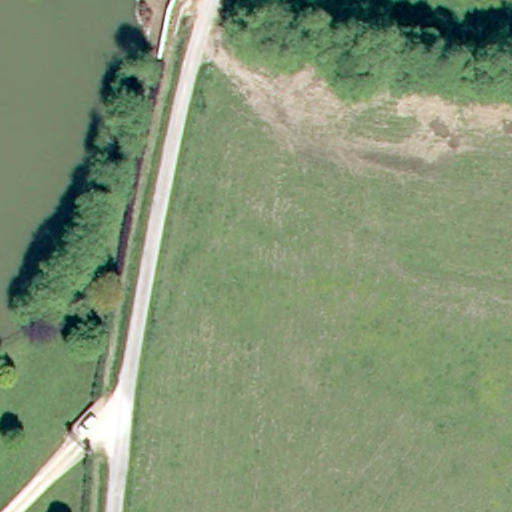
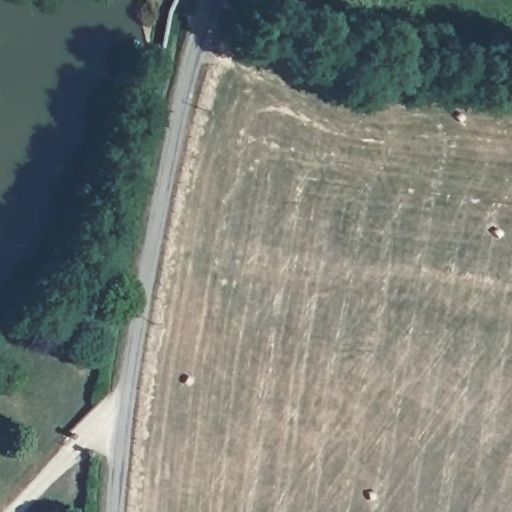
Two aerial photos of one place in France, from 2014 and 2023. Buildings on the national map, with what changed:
[]

